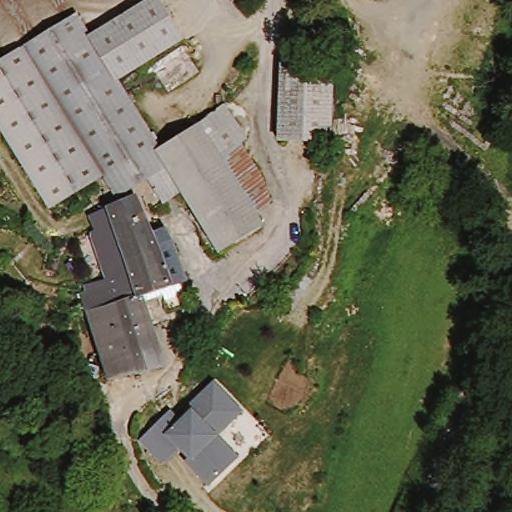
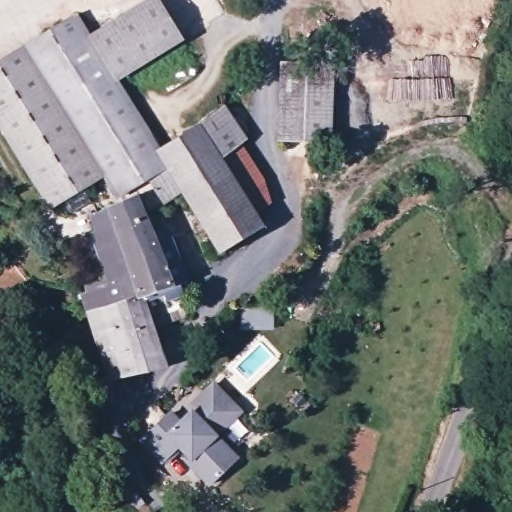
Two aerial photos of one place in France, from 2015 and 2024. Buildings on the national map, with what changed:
unchanged [(21,48),(45,33),(59,26),(74,17),(87,36),(149,0),(151,0),(178,41),(114,81),(60,106),(23,51),(21,48)]
unchanged [(0,128),(0,64),(23,51),(60,106),(114,81),(118,80),(163,150),(169,160),(116,192),(103,173),(93,180),(51,209),(0,128)]
unchanged [(289,138),(289,62),(335,62),(334,138),(289,138)]
unchanged [(151,186),(177,171),(169,160),(163,150),(231,104),(256,140),(228,161),(251,194),(259,188),(274,208),(262,216),(269,227),(231,251),(186,184),(158,200),(151,186)]
unchanged [(283,181),(284,201),(274,208),(259,188),(251,194),(228,161),(256,140),(283,181)]
unchanged [(144,288),(128,237),(118,201),(143,195),(154,236),(168,233),(171,248),(185,285),(147,298),(144,288)]
unchanged [(83,304),(77,286),(80,285),(101,280),(99,273),(103,272),(90,229),(96,227),(93,217),(91,208),(97,207),(118,201),(128,237),(144,288),(147,298),(166,361),(108,379),(107,379),(83,304)]
unchanged [(86,394),(13,372),(20,350),(93,374),(86,394)]
unchanged [(174,452),(161,462),(139,442),(168,409),(174,414),(213,379),(244,413),(217,440),(237,460),(209,487),(174,452)]

